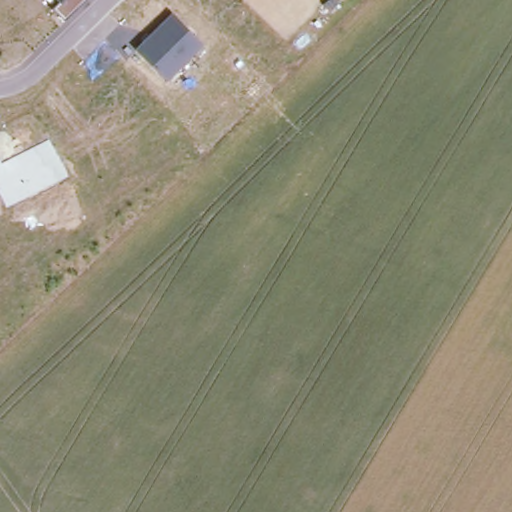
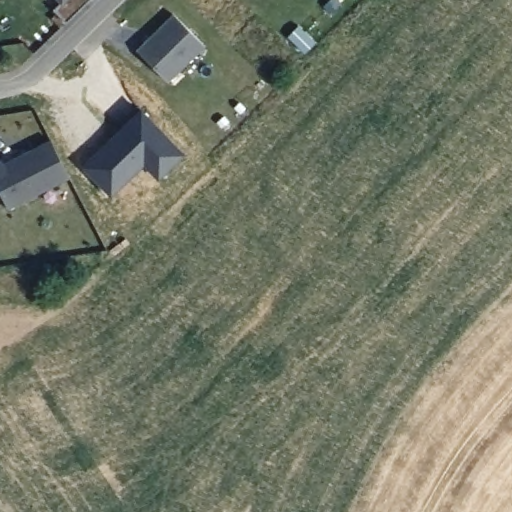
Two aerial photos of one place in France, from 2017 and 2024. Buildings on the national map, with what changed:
unchanged [(54,8),(61,0),(87,0),(66,21),(54,8)]
unchanged [(174,16),(204,47),(166,84),(136,53),(174,16)]
new [(159,181),(145,164),(111,197),(81,168),(139,108),(185,154),(159,181)]
unchanged [(10,208),(0,189),(0,166),(50,141),(67,179),(10,208)]

